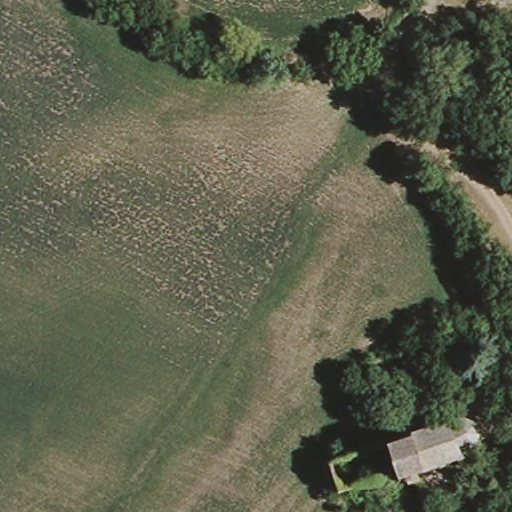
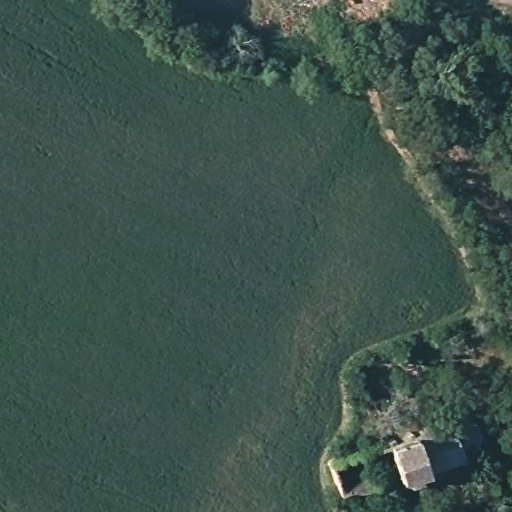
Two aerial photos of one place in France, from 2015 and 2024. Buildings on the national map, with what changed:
unchanged [(417,432),(444,418),(470,411),(478,435),(457,442),(460,455),(404,484),(388,443),(417,432)]

